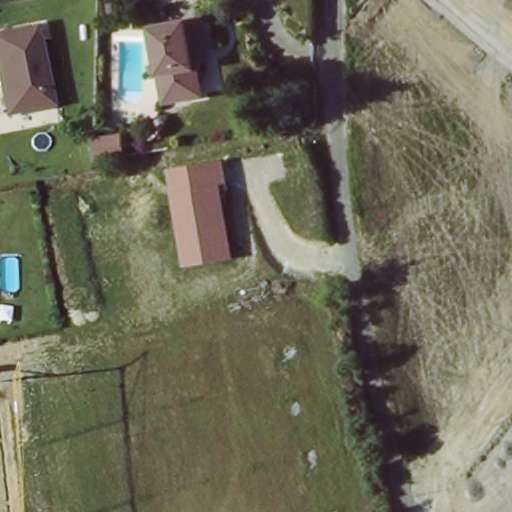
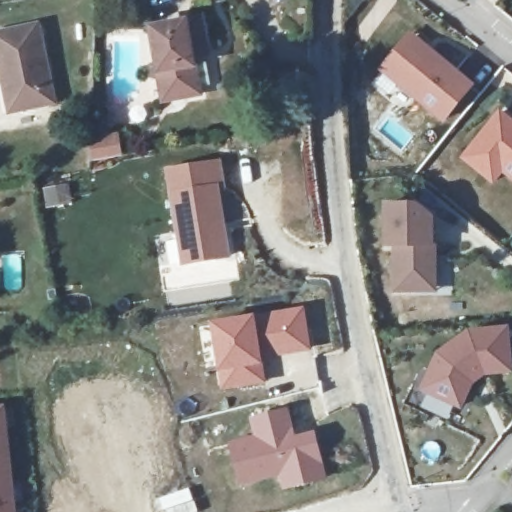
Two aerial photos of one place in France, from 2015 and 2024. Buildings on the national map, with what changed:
unchanged [(154,29),(203,20),(209,52),(196,56),(201,81),(203,92),(167,99),(162,69),(154,29)]
unchanged [(0,41),(0,38),(42,30),(52,81),(57,107),(19,113),(14,85),(8,86),(0,41)]
new [(409,32),(475,83),(444,123),(379,70),(409,32)]
new [(512,120),(512,183),(502,174),(492,186),(458,158),(498,110),(512,120)]
unchanged [(227,159),(232,186),(223,189),(234,260),(183,267),(168,169),(227,159)]
unchanged [(416,293),(396,292),(396,248),(388,248),(388,207),(418,207),(433,219),(433,247),(436,247),(435,279),(436,293),(416,293)]
new [(305,305),(312,352),(265,360),(257,313),(305,305)]
new [(257,313),(265,360),(267,383),(220,390),(212,321),(257,313)]
new [(461,408),(423,390),(439,356),(470,334),(508,331),(512,373),(484,375),(472,384),(461,408)]
new [(253,432),(248,417),(288,405),(297,434),(315,430),(328,480),(281,492),(277,477),(237,488),(226,439),(253,432)]
unchanged [(3,410),(14,512),(0,512),(0,411),(3,410)]
new [(198,511),(196,512),(162,512),(157,498),(189,486),(198,511)]

